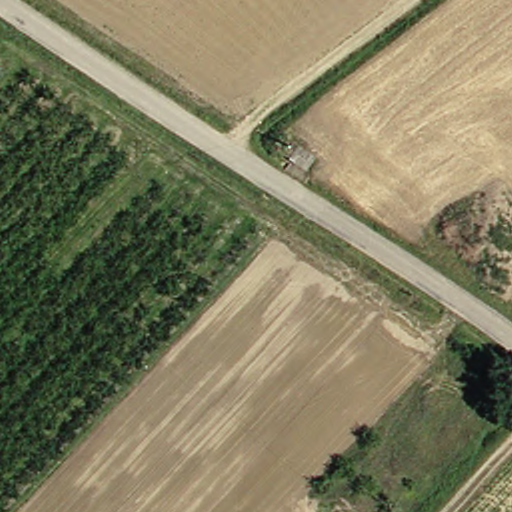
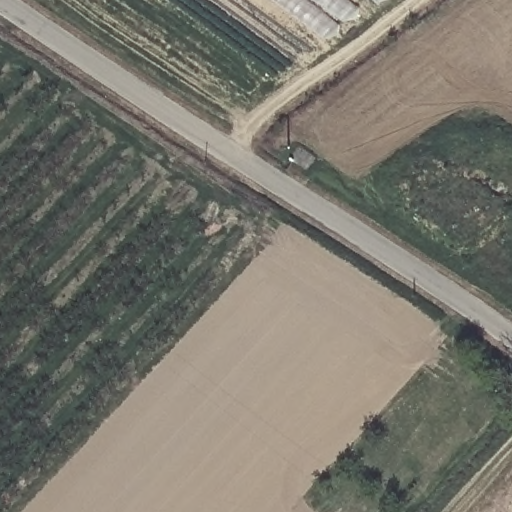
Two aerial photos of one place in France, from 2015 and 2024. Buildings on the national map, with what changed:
new [(273,0),(346,0),(360,10),(330,40),(273,0)]
new [(373,0),(383,0),(378,4),(373,0)]

